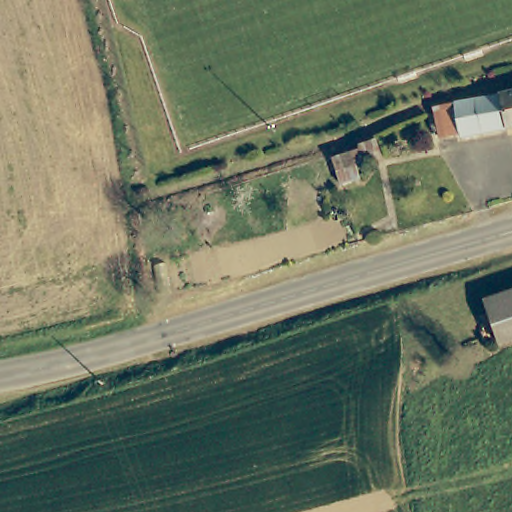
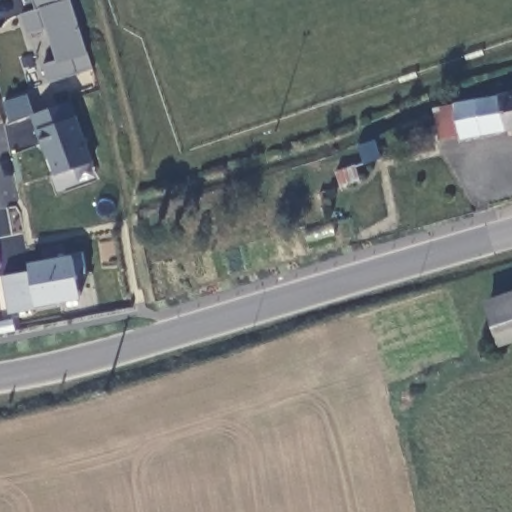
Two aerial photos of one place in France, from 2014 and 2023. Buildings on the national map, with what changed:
new [(87,52),(92,69),(47,82),(41,65),(51,61),(52,62),(56,61),(46,29),(27,34),(20,14),(35,10),(32,0),(71,0),(87,52)]
unchanged [(495,96),(512,91),(512,134),(508,135),(495,96)]
unchanged [(453,142),(437,147),(426,119),(445,112),(444,109),(495,96),(508,135),(456,150),(453,142)]
new [(93,161),(55,175),(48,158),(45,158),(39,141),(41,141),(31,116),(71,102),(93,161)]
new [(85,272),(76,276),(80,298),(59,302),(59,303),(9,313),(2,275),(29,269),(28,262),(73,255),(81,252),(85,272)]
unchanged [(489,303),(512,295),(512,341),(499,345),(489,303)]

